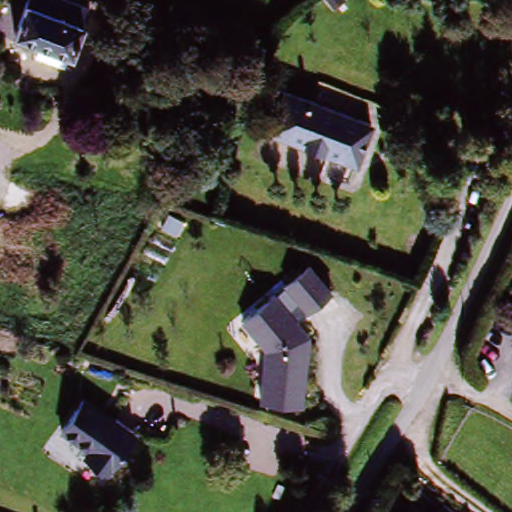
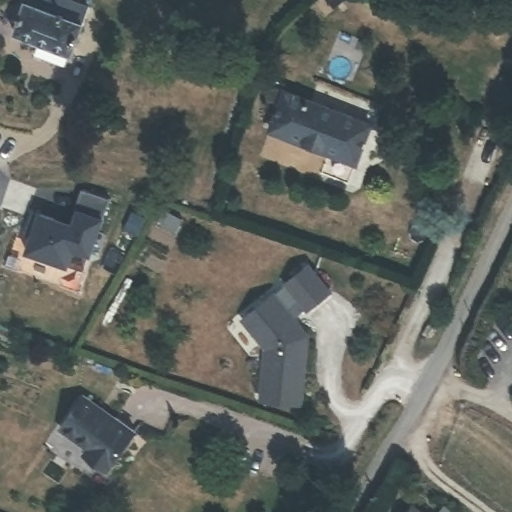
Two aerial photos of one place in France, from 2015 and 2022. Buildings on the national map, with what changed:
unchanged [(21,1),(21,0),(72,0),(91,7),(74,54),(69,53),(66,64),(37,58),(41,45),(15,37),(19,26),(9,22),(14,11),(23,14),(26,6),(21,1)]
unchanged [(338,169),(257,135),(274,95),(355,129),(338,169)]
new [(54,216),(72,223),(77,209),(74,208),(81,188),(109,198),(88,254),(72,247),(65,264),(25,249),(30,235),(23,232),(32,208),(54,216)]
unchanged [(265,349),(242,318),(277,293),(287,309),(296,298),(285,284),(312,267),(333,293),(295,321),(310,338),(303,406),(258,400),(265,349)]
unchanged [(110,416),(112,414),(137,431),(110,470),(86,455),(90,449),(62,428),(86,395),(100,405),(99,409),(110,416)]
unchanged [(416,512),(402,512),(407,505),(416,512)]
unchanged [(445,512),(437,512),(441,508),(445,512)]

